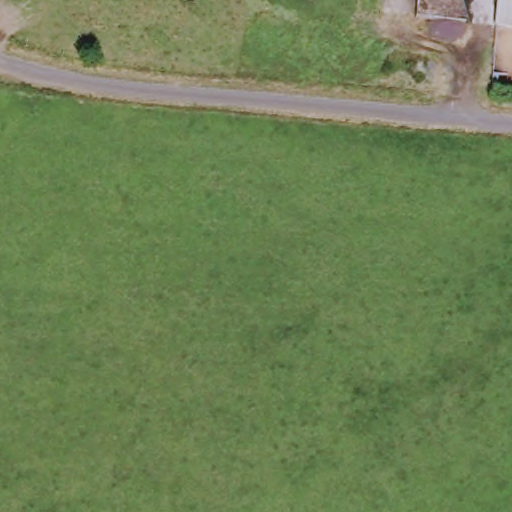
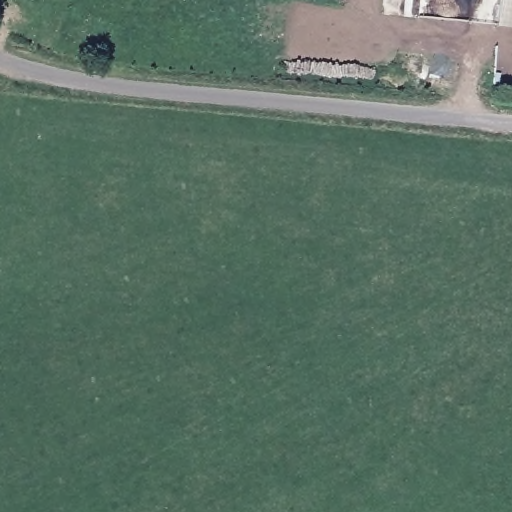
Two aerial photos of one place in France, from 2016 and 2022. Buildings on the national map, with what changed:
unchanged [(504,0),(512,0),(512,27),(500,27),(504,0)]

